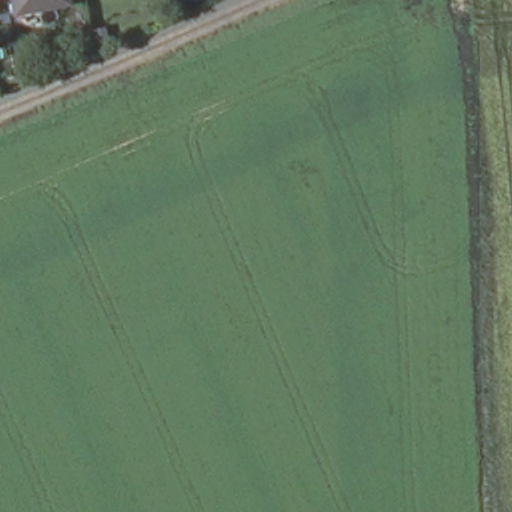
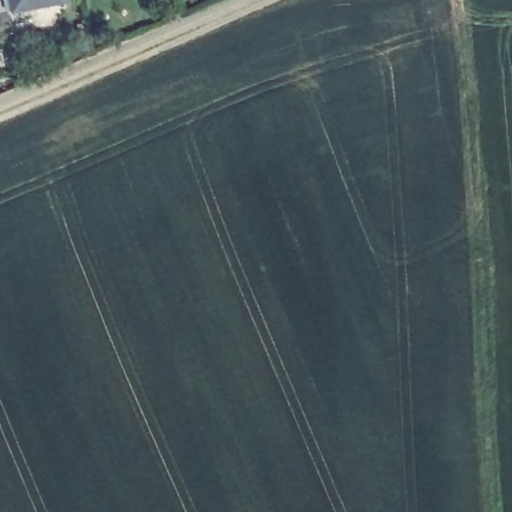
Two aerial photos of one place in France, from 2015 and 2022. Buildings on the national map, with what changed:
unchanged [(20,16),(17,0),(72,0),(72,4),(20,16)]

